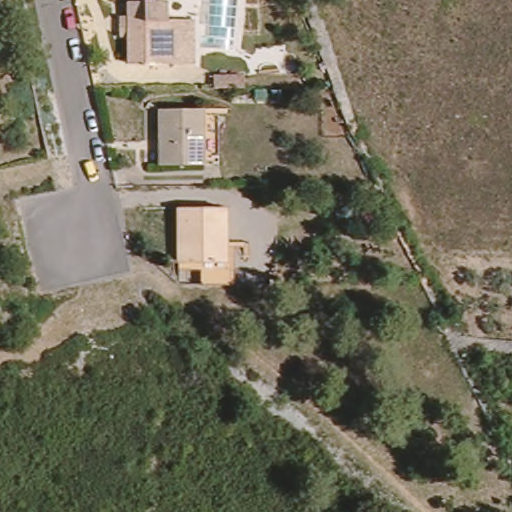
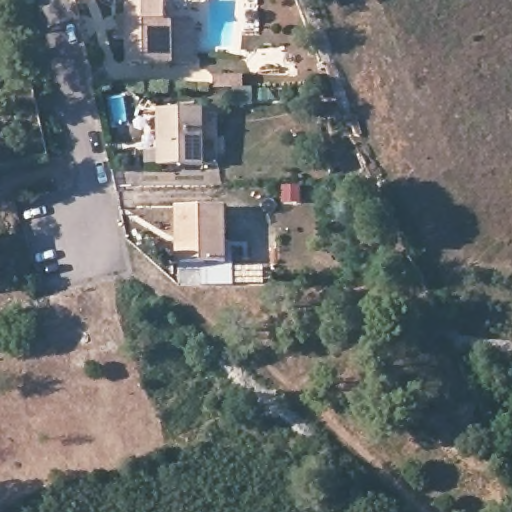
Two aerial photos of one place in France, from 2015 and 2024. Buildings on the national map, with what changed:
unchanged [(130,37),(120,37),(120,17),(130,17),(130,2),(145,2),(145,0),(161,0),(161,2),(168,2),(168,21),(173,21),(194,21),(194,64),(173,64),(130,64),(130,37)]
unchanged [(215,87),(214,75),(244,75),(244,87),(215,87)]
unchanged [(199,165),(156,165),(155,109),(199,109),(199,115),(214,115),(214,165),(199,165)]
unchanged [(225,202),(226,256),(234,256),(234,280),(202,280),(202,257),(183,257),(183,227),(178,227),(178,202),(225,202)]

